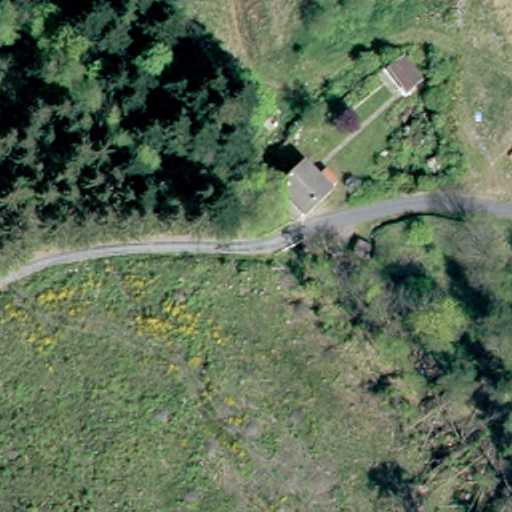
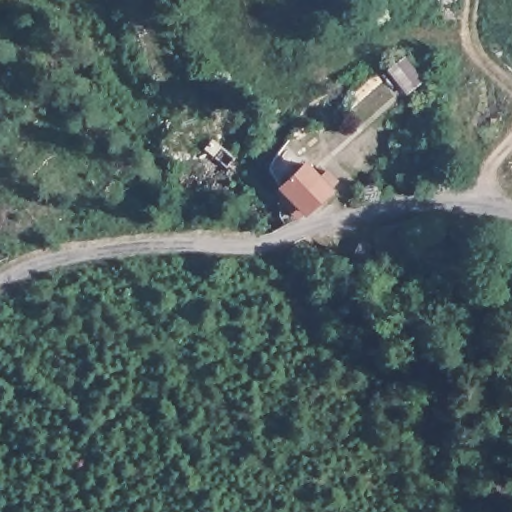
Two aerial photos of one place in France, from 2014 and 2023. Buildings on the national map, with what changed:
unchanged [(423,82),(407,92),(389,68),(405,58),(423,82)]
unchanged [(306,168),(329,191),(299,216),(278,192),(306,168)]

